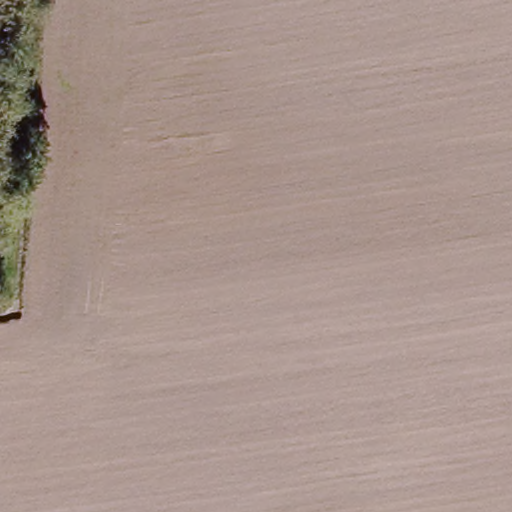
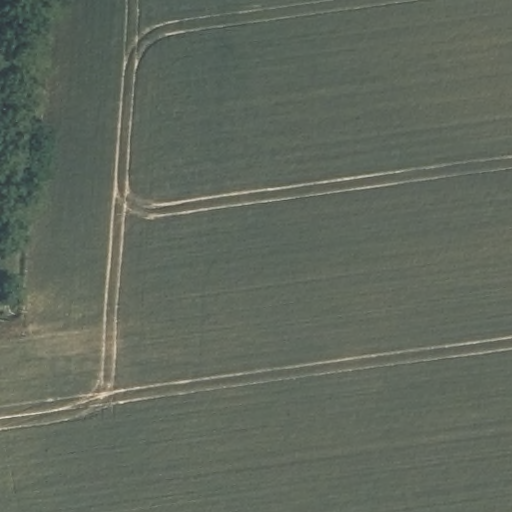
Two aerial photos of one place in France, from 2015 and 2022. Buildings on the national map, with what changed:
[]

